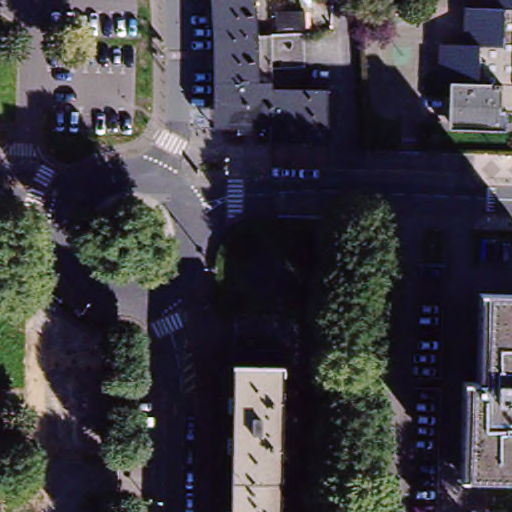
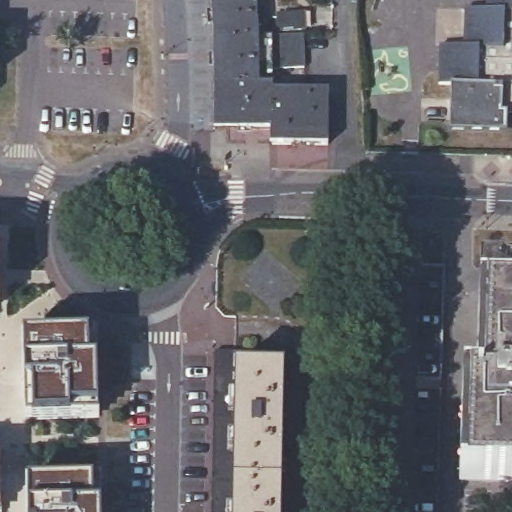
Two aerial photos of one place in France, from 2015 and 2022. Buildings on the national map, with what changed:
unchanged [(296,36),(297,67),(266,67),(267,90),(325,88),(326,139),(268,141),(267,125),(231,126),(211,127),(209,48),(208,15),(207,0),(252,0),(255,37),(296,36)]
unchanged [(478,132),(465,132),(452,131),(454,84),(444,83),(445,67),(447,45),(462,46),(470,46),(472,10),(494,11),(494,0),(512,0),(512,115),(510,115),(510,121),(510,134),(478,132)]
unchanged [(274,11),(303,9),(304,26),(275,27),(274,11)]
unchanged [(512,289),(512,484),(466,482),(470,392),(485,392),(489,287),(512,289)]
new [(88,336),(96,335),(96,362),(96,409),(97,416),(69,417),(32,417),(25,418),(24,383),(22,363),(22,338),(26,337),(88,336)]
unchanged [(281,351),(280,366),(232,365),(229,512),(209,512),(210,503),(213,349),(281,351)]
unchanged [(277,495),(277,512),(229,512),(232,365),(280,366),(277,495)]
new [(92,481),(101,480),(100,507),(100,512),(28,512),(27,508),(29,482),(92,481)]

